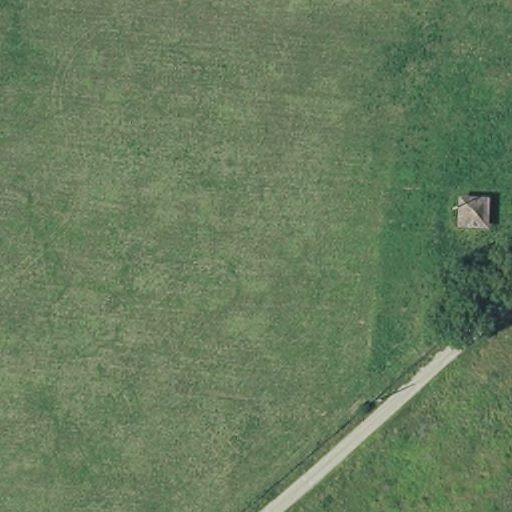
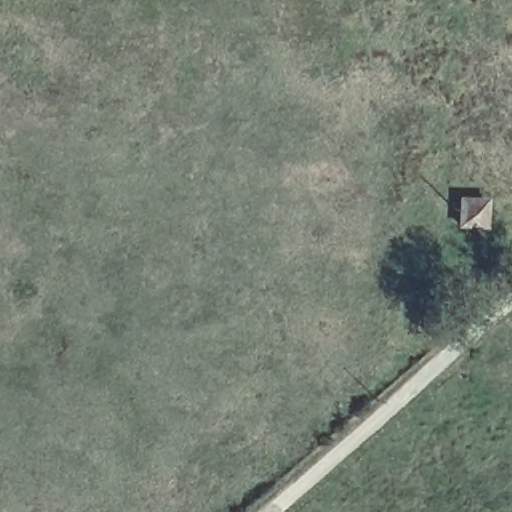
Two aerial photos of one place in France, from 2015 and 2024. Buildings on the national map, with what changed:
unchanged [(485,196),(485,225),(458,225),(459,196),(485,196)]

